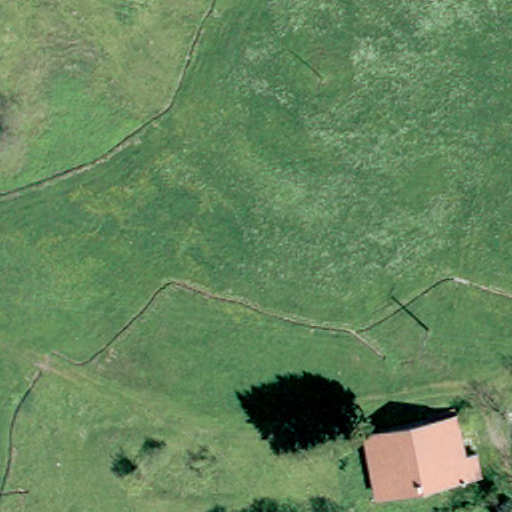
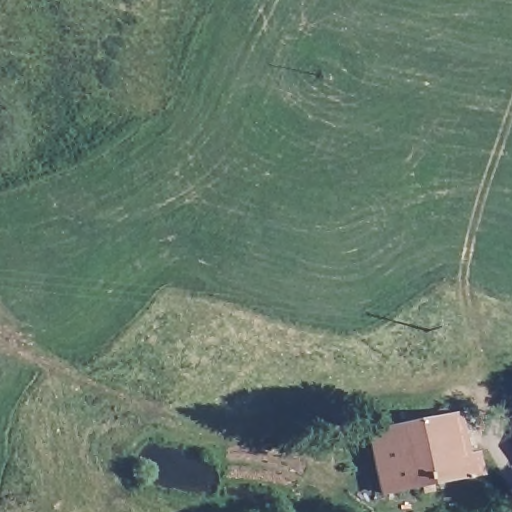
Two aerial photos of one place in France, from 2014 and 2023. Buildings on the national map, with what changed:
unchanged [(450,408),(465,453),(472,450),(477,466),(427,479),(429,489),(415,492),(412,482),(378,491),(362,431),(450,408)]

